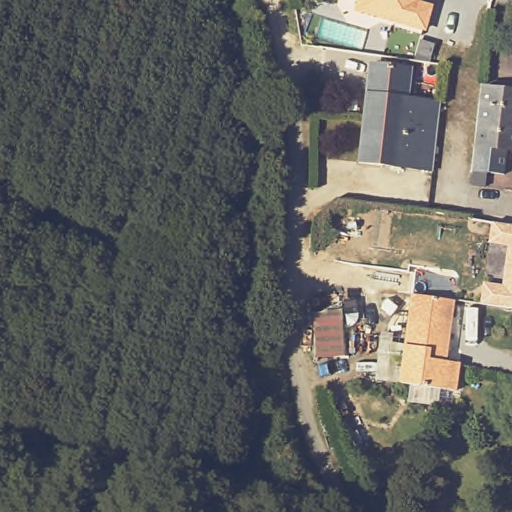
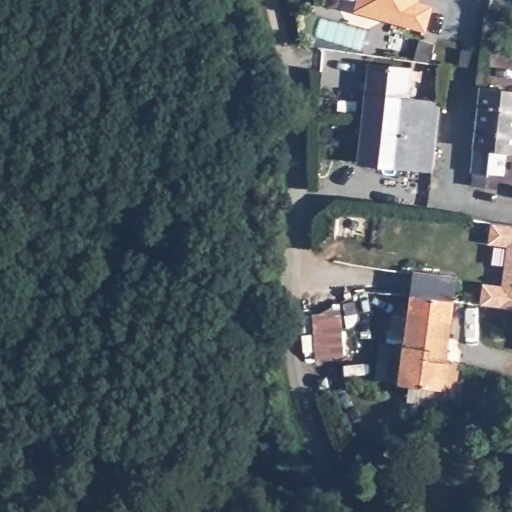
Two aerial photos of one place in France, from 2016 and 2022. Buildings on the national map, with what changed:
unchanged [(423,30),(363,13),(358,3),(359,0),(417,0),(415,4),(430,8),(423,30)]
unchanged [(371,61),(411,65),(408,95),(439,98),(432,166),(360,159),(371,61)]
unchanged [(468,181),(469,169),(477,84),(512,88),(512,148),(503,147),(500,172),(486,171),(484,183),(468,181)]
unchanged [(480,304),(483,283),(504,285),(508,247),(489,244),(492,224),(512,226),(512,308),(480,304)]
unchanged [(446,363),(459,365),(456,392),(403,386),(412,298),(454,302),(446,363)]
unchanged [(314,316),(344,301),(343,359),(314,359),(314,316)]

